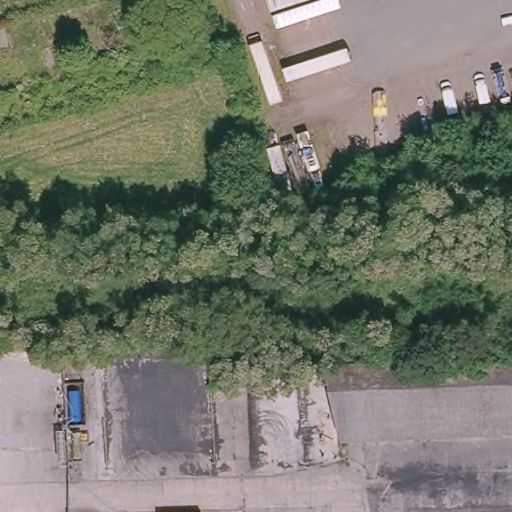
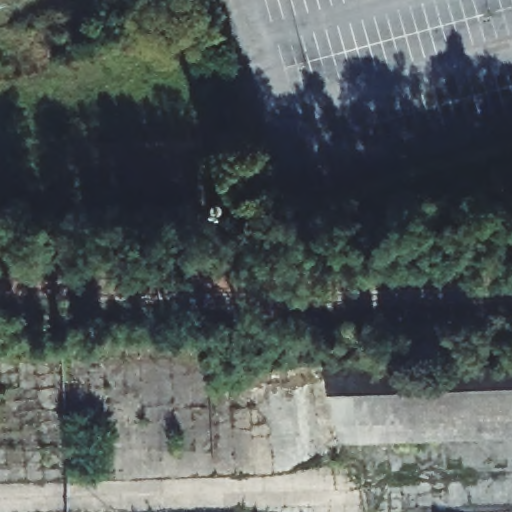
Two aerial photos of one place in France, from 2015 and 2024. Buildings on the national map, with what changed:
unchanged [(512,433),(341,441),(327,372),(325,365),(500,364),(512,364),(512,433)]

